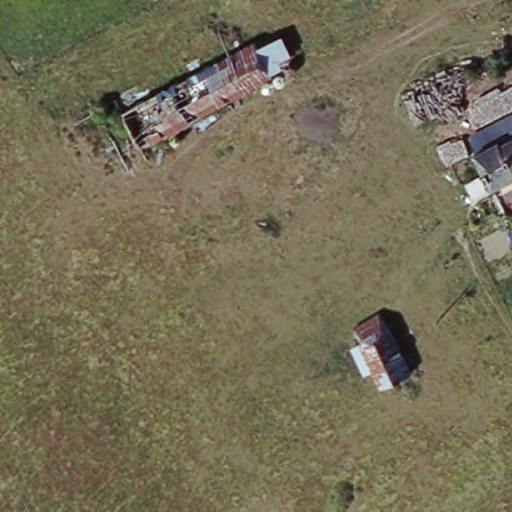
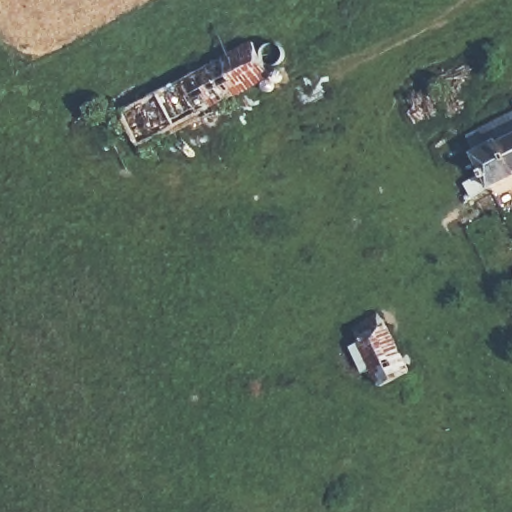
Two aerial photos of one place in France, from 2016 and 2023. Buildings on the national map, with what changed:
unchanged [(265,50),(285,40),(295,60),(275,70),(277,76),(147,145),(130,111),(259,43),(265,50)]
unchanged [(497,193),(480,159),(506,144),(500,133),(512,127),(512,186),(497,193)]
unchanged [(376,310),(389,322),(411,367),(382,383),(352,323),(376,310)]

